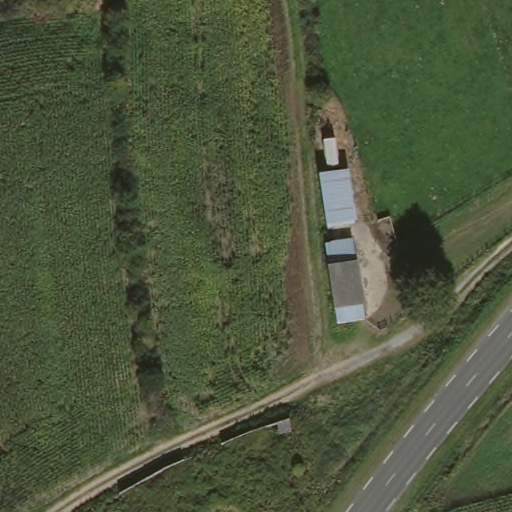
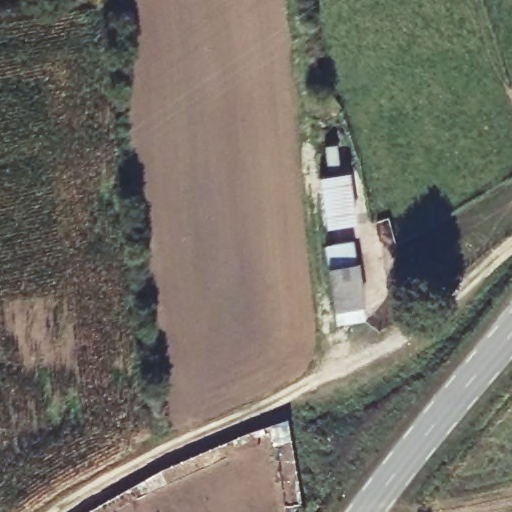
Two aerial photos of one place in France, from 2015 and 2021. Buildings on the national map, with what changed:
unchanged [(350,222),(322,225),(316,174),(343,171),(350,222)]
unchanged [(333,305),(326,262),(324,239),(353,236),(362,315),(335,318),(333,305)]

